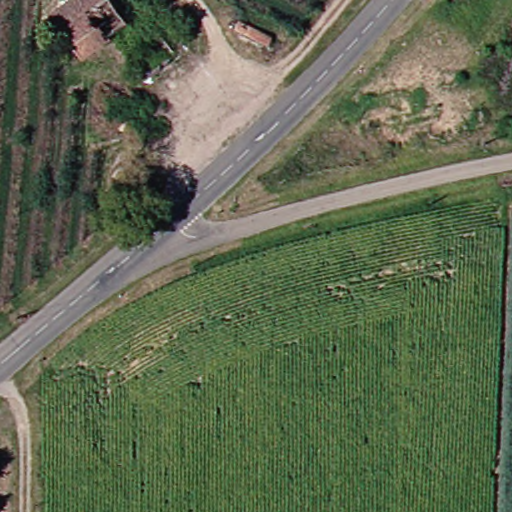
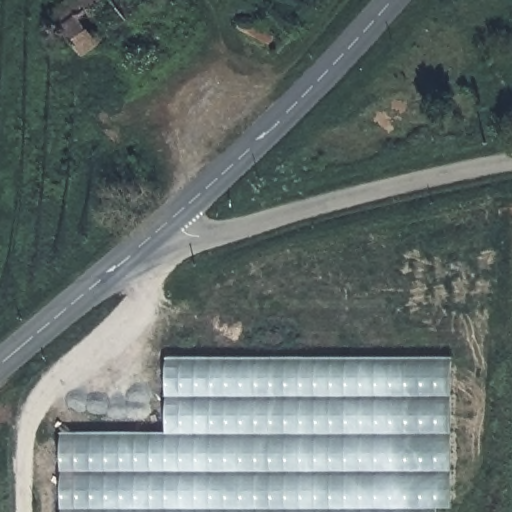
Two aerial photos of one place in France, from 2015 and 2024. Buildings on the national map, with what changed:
unchanged [(113,37),(84,56),(55,15),(75,0),(113,0),(121,10),(133,0),(166,0),(196,45),(184,54),(146,81),(113,37)]
new [(165,431),(165,358),(451,357),(451,508),(436,508),(436,512),(59,512),(59,428),(165,431)]

